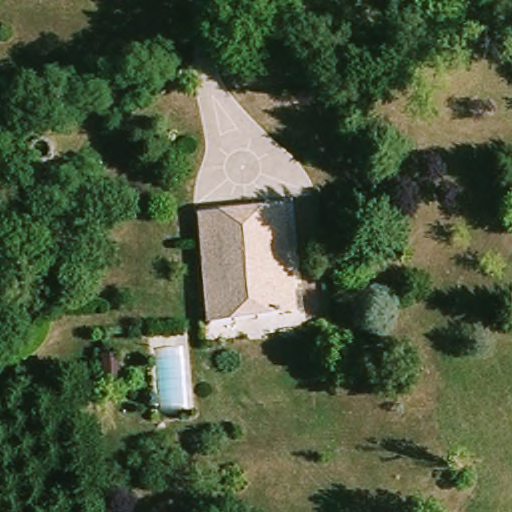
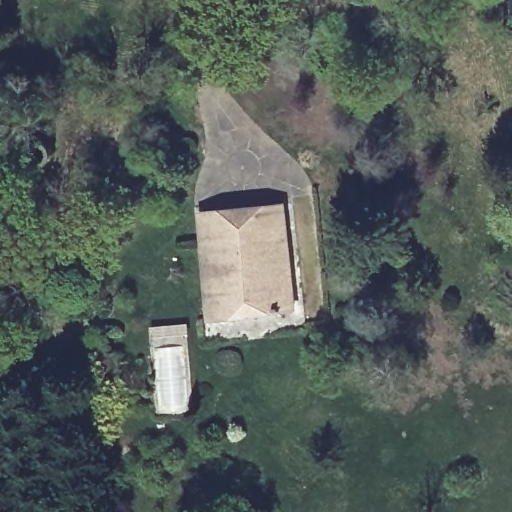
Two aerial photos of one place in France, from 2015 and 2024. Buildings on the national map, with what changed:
unchanged [(284,208),(287,238),(286,238),(294,314),(209,322),(199,217),(284,208)]
unchanged [(103,354),(119,353),(120,382),(104,383),(103,354)]

